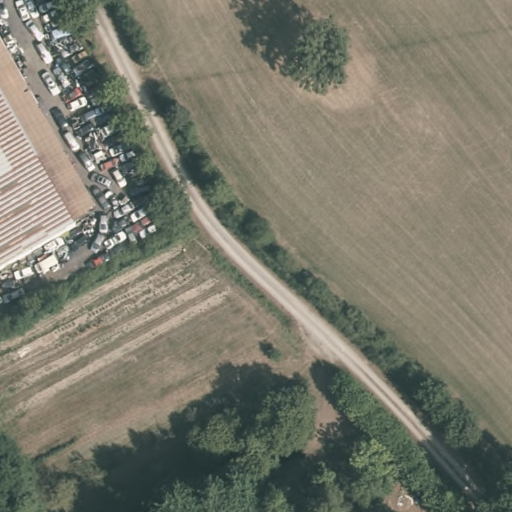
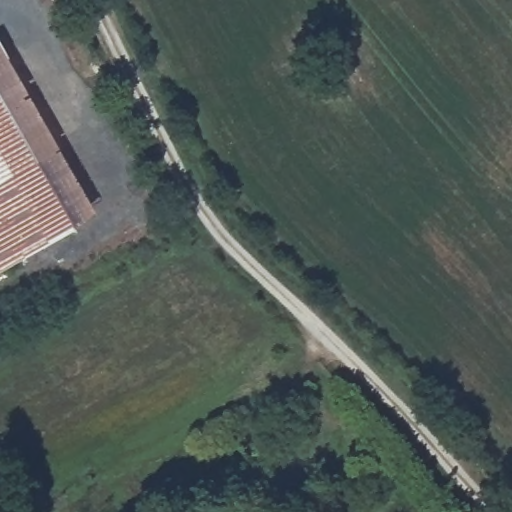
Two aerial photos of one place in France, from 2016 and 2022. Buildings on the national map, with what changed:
unchanged [(101,212),(74,227),(0,97),(0,38),(3,37),(101,212)]
unchanged [(0,269),(0,97),(74,227),(0,269)]

